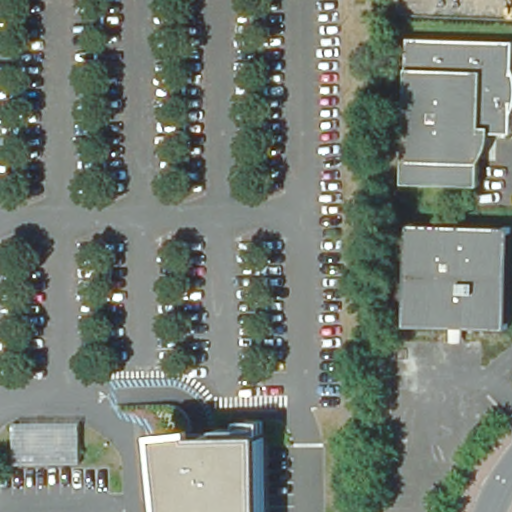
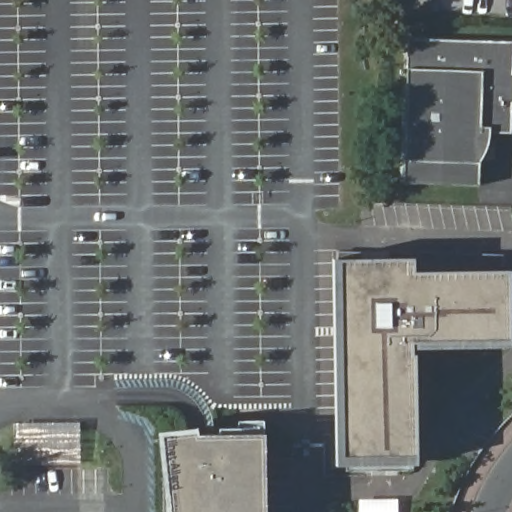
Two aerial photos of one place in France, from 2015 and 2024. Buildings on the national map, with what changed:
unchanged [(405,35),(512,38),(512,50),(508,54),(512,63),(512,104),(511,132),(480,131),(479,161),(402,160),(405,35)]
unchanged [(478,186),(401,183),(402,160),(479,161),(478,186)]
demolished [(508,330),(405,326),(408,223),(511,226),(508,330)]
new [(416,349),(417,465),(335,466),(333,260),(414,257),(414,271),(510,270),(510,347),(416,349)]
unchanged [(77,465),(12,466),(11,421),(75,422),(77,465)]
unchanged [(266,512),(167,512),(158,433),(197,428),(198,436),(265,434),(266,512)]

